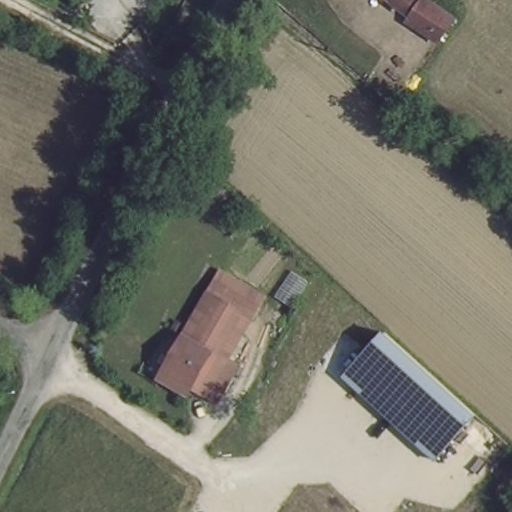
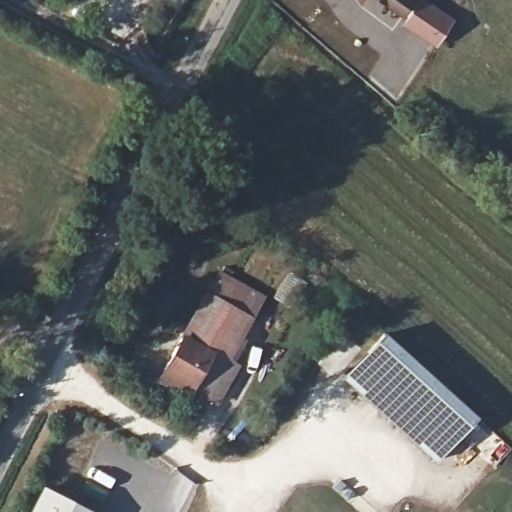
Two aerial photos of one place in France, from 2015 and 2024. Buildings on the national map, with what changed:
unchanged [(401,11),(385,0),(408,0),(401,11)]
unchanged [(449,15),(432,40),(403,20),(416,0),(426,0),(449,15)]
unchanged [(261,290),(249,312),(206,287),(218,266),(261,290)]
unchanged [(249,312),(224,355),(235,362),(216,397),(161,366),(206,287),(249,312)]
unchanged [(474,415),(433,461),(341,378),(382,330),(474,415)]
new [(94,512),(27,512),(40,485),(94,512)]

